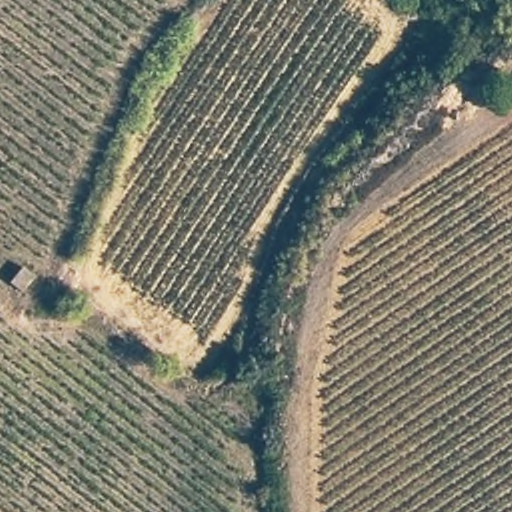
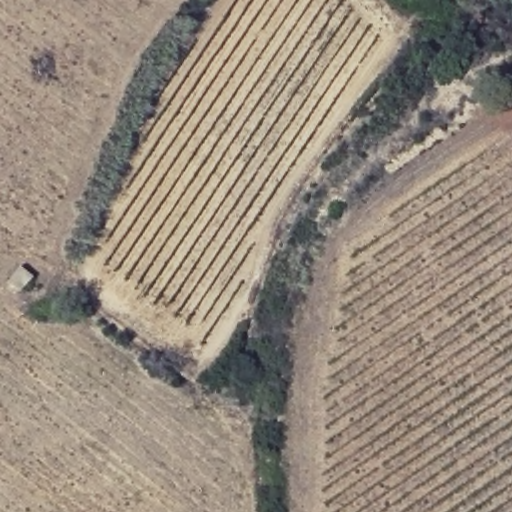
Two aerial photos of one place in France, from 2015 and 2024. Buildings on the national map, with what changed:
unchanged [(7,278),(17,262),(36,270),(22,289),(7,278)]

